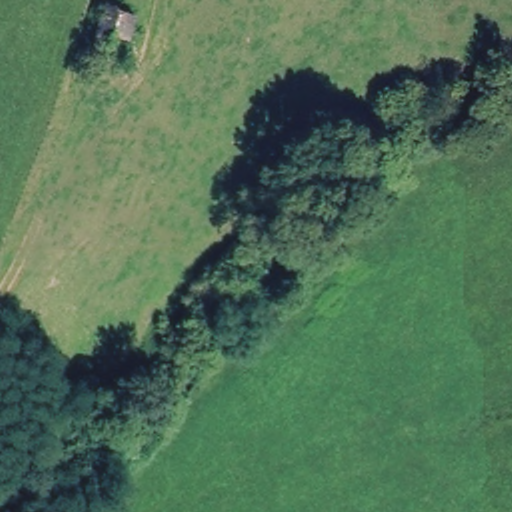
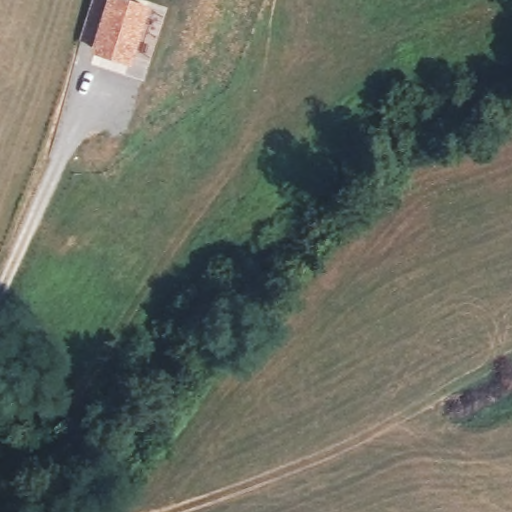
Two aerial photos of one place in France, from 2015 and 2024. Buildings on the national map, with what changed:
new [(91,52),(93,45),(81,42),(93,0),(138,0),(151,4),(132,65),(91,52)]
demolished [(117,21),(126,23),(114,60),(87,50),(98,14),(117,21)]

